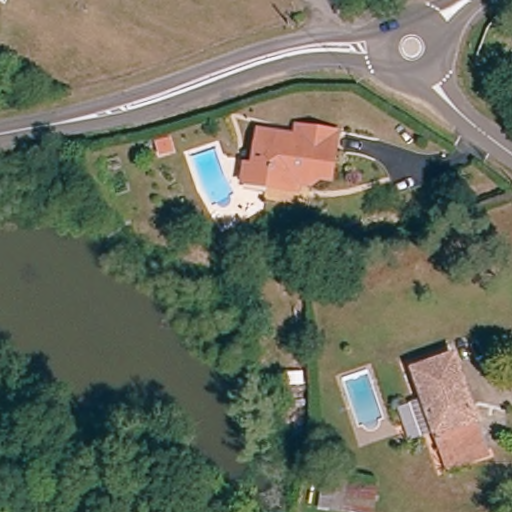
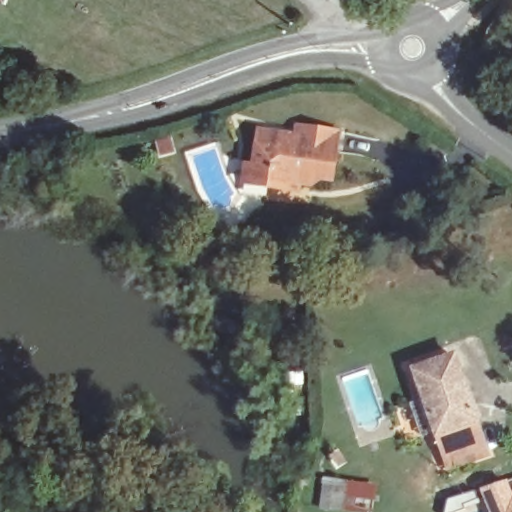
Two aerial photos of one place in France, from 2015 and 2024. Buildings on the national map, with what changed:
unchanged [(0,1),(0,0),(10,0),(8,5),(0,1)]
unchanged [(303,181),(302,186),(294,183),(292,193),(257,178),(239,172),(244,157),(249,159),(264,123),(296,136),(298,129),(333,144),(320,178),(317,186),(303,181)]
unchanged [(407,409),(424,404),(416,378),(457,362),(488,458),(445,473),(435,434),(415,440),(407,409)]
unchanged [(325,477),(376,486),(371,512),(319,512),(325,477)]
new [(512,477),(512,512),(488,512),(479,489),(508,479),(512,477)]

